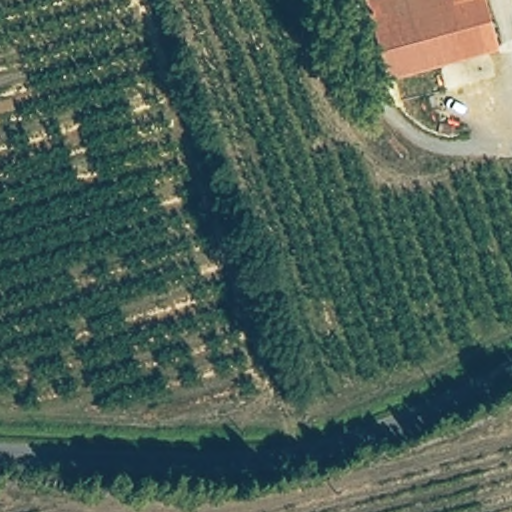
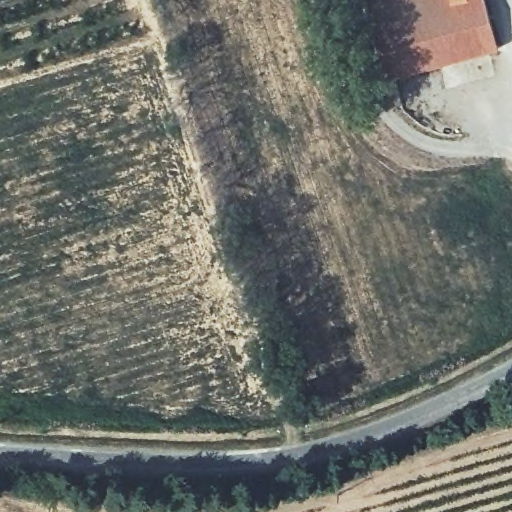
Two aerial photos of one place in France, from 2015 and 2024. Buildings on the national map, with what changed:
unchanged [(498,49),(387,80),(364,0),(484,0),(498,49)]

